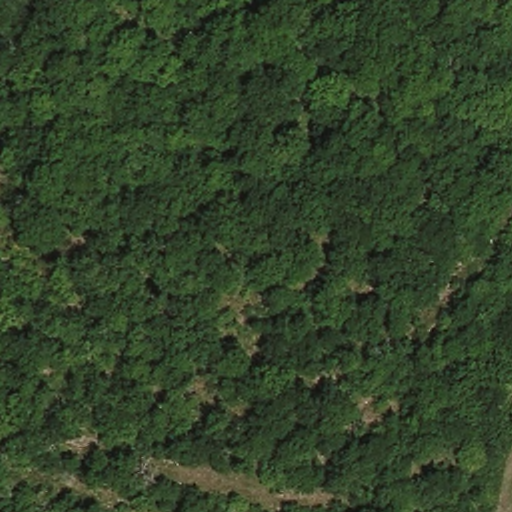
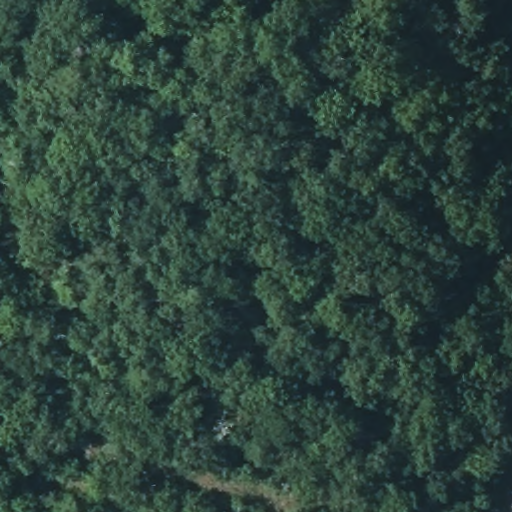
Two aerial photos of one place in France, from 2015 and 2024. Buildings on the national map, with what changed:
[]

